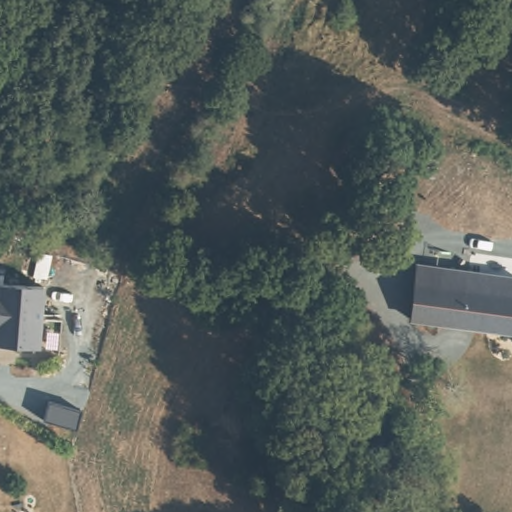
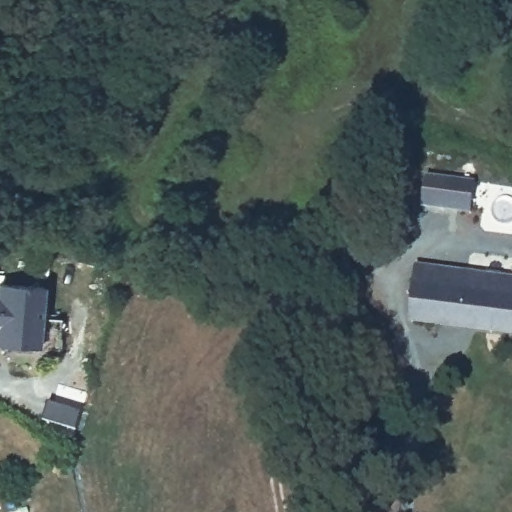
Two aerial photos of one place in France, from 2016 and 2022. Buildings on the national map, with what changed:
new [(470,213),(421,206),(425,174),(475,180),(470,213)]
unchanged [(512,333),(409,321),(418,262),(512,274),(512,333)]
unchanged [(41,348),(0,350),(0,286),(39,284),(41,348)]

